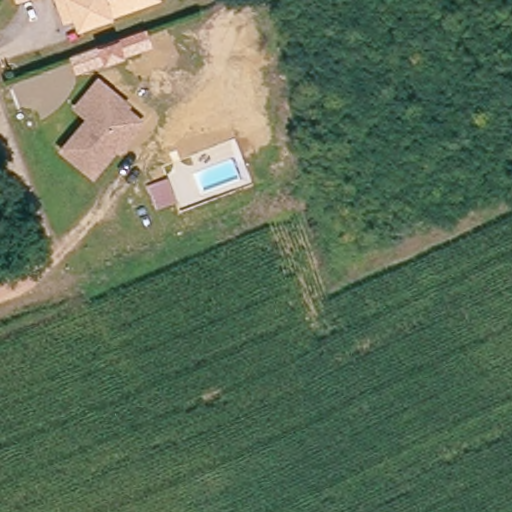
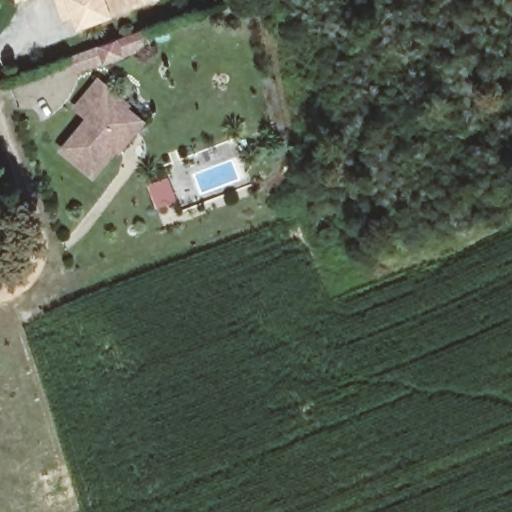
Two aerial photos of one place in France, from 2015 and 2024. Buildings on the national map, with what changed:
unchanged [(140,0),(120,7),(117,2),(99,10),(101,14),(77,22),(69,17),(67,15),(57,18),(55,12),(51,0),(140,0)]
unchanged [(153,28),(158,42),(115,57),(87,67),(82,53),(110,43),(153,28)]
unchanged [(127,152),(123,148),(98,176),(68,149),(96,117),(83,106),(107,80),(129,101),(126,104),(147,122),(151,125),(127,152)]

